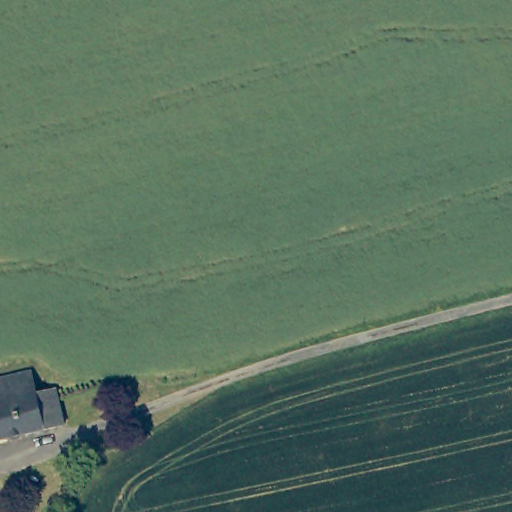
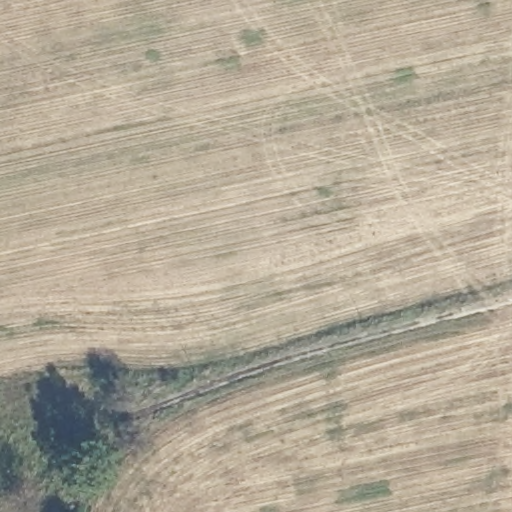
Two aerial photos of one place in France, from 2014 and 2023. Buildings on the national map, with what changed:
demolished [(59,388),(68,423),(0,440),(0,379),(34,370),(41,392),(59,388)]

